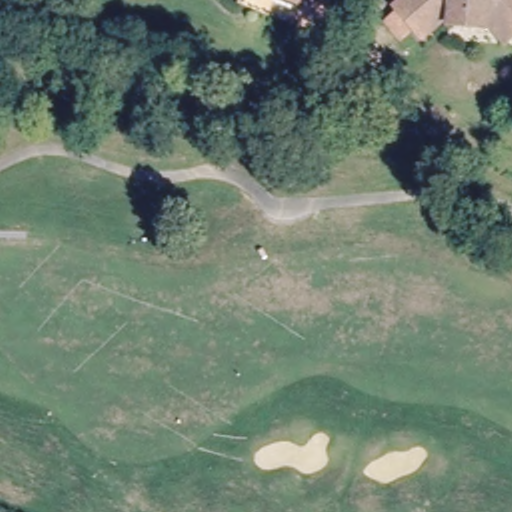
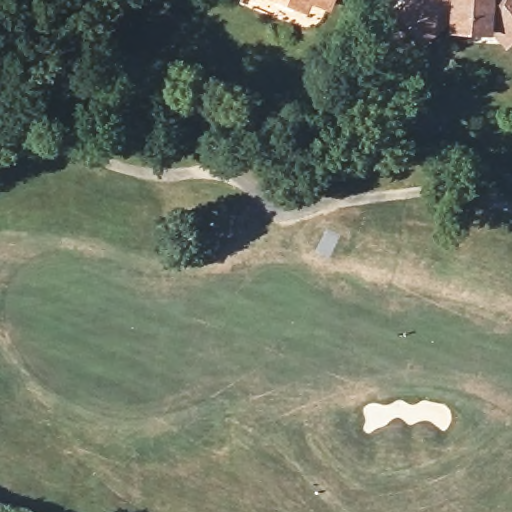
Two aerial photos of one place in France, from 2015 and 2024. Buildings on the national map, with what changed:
unchanged [(329,11),(305,0),(333,0),(329,11)]
unchanged [(451,25),(452,12),(423,36),(397,4),(402,0),(512,0),(512,35),(506,40),(495,28),(451,25)]

